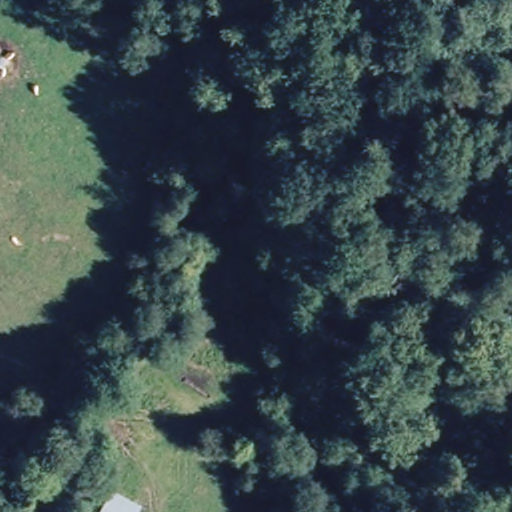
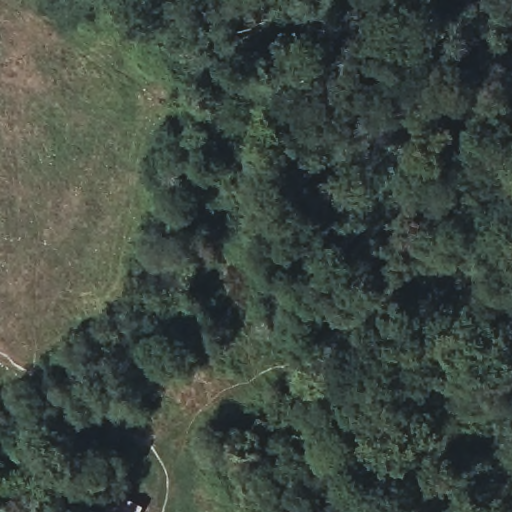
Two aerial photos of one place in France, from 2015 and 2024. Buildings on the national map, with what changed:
unchanged [(111,492),(145,510),(144,512),(101,512),(111,492)]

